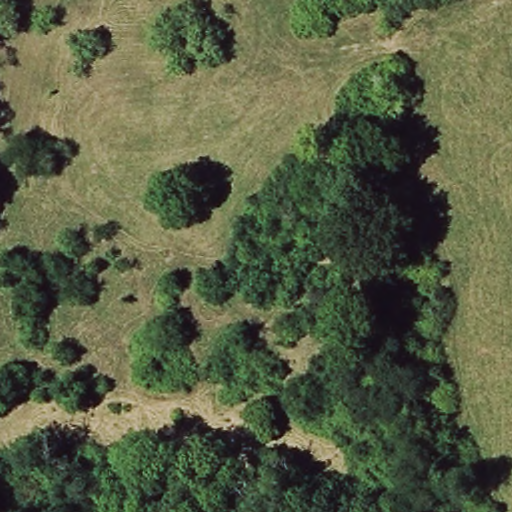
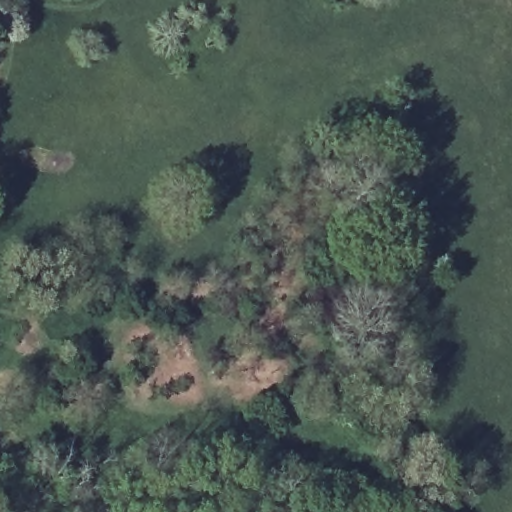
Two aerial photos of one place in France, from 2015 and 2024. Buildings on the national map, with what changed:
[]

